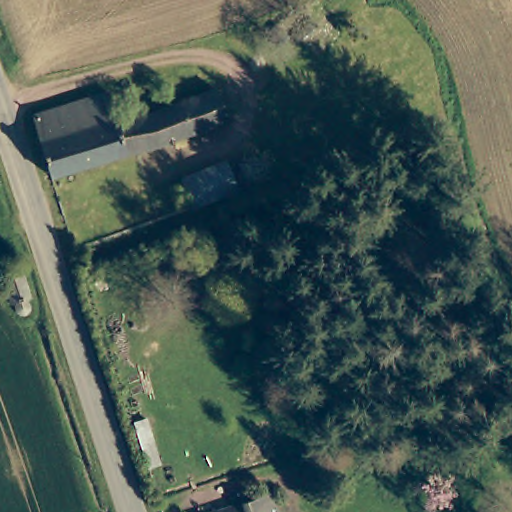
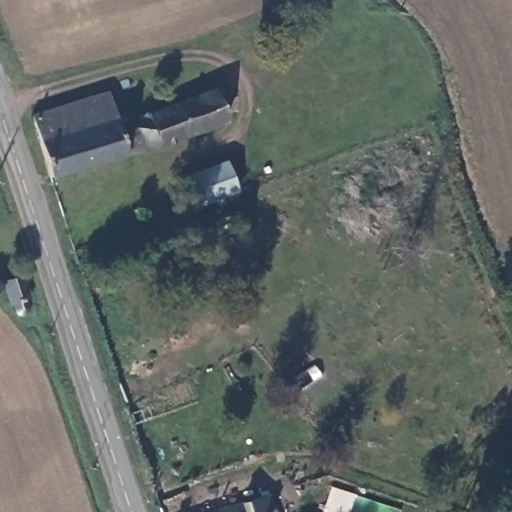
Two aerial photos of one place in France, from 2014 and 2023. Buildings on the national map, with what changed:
unchanged [(110,92),(114,103),(121,123),(158,111),(216,91),(219,98),(227,123),(171,146),(85,172),(66,106),(110,92)]
unchanged [(33,117),(66,106),(85,172),(53,182),(33,117)]
unchanged [(227,163),(236,191),(192,209),(183,180),(227,163)]
unchanged [(31,298),(32,300),(32,304),(31,307),(28,309),(25,310),(22,309),(19,306),(18,303),(14,304),(7,280),(26,272),(34,297),(31,298)]
unchanged [(271,497),(274,496),(278,512),(222,512),(271,497)]

